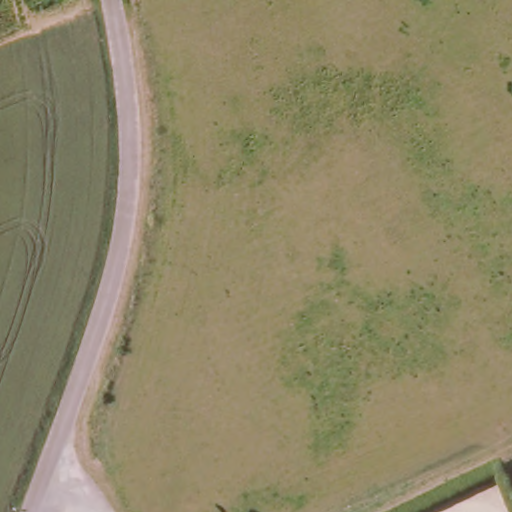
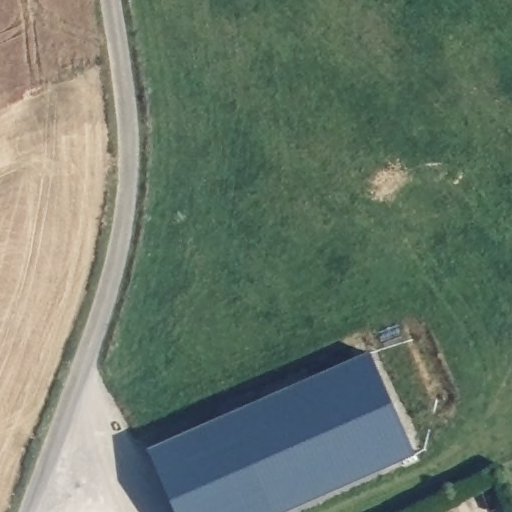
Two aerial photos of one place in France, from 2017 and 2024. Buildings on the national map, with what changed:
new [(177,512),(150,451),(371,353),(415,455),(285,512),(177,512)]

